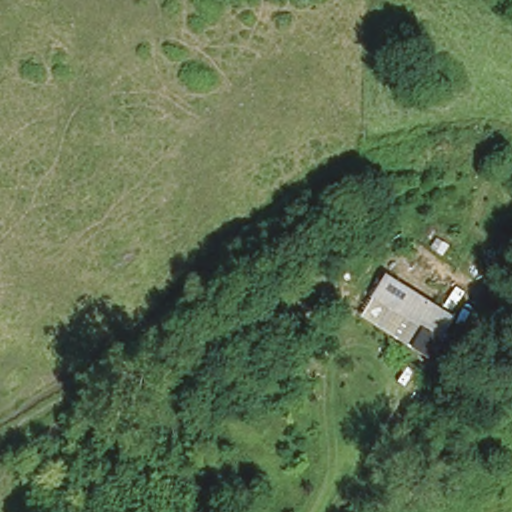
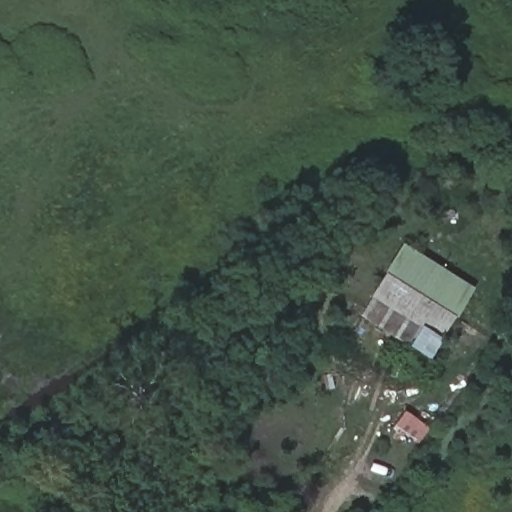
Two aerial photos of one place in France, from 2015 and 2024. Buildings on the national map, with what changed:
new [(388,272),(405,244),(475,288),(458,317),(388,272)]
unchanged [(430,360),(358,316),(388,272),(458,317),(430,360)]

